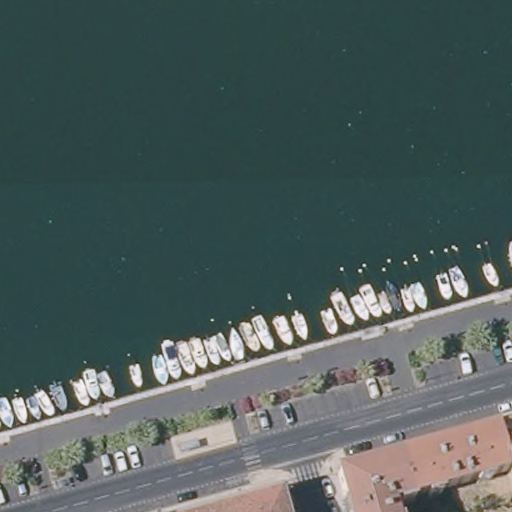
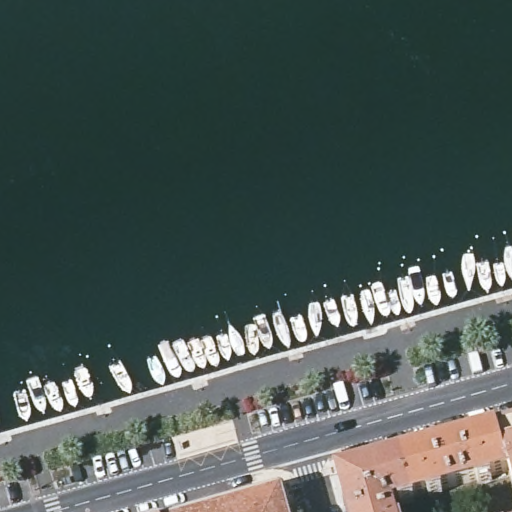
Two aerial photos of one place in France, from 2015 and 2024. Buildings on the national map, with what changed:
unchanged [(497,431),(512,427),(512,487),(508,472),(497,431)]
unchanged [(497,431),(508,472),(490,476),(491,481),(478,485),(477,480),(442,490),(443,494),(428,498),(427,495),(413,498),(414,503),(399,506),(399,502),(393,504),(395,512),(350,512),(340,475),(497,431)]
unchanged [(292,512),(211,512),(286,491),(292,512)]

